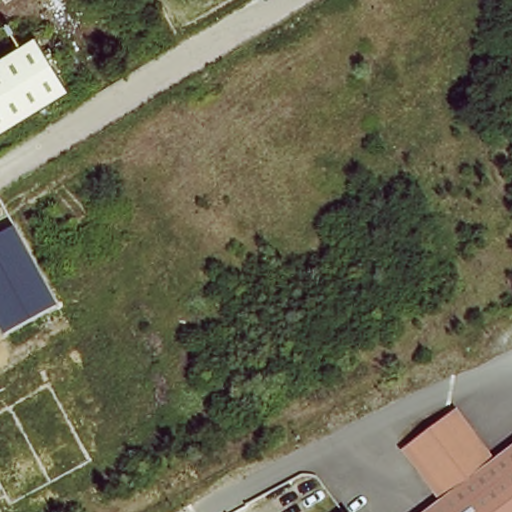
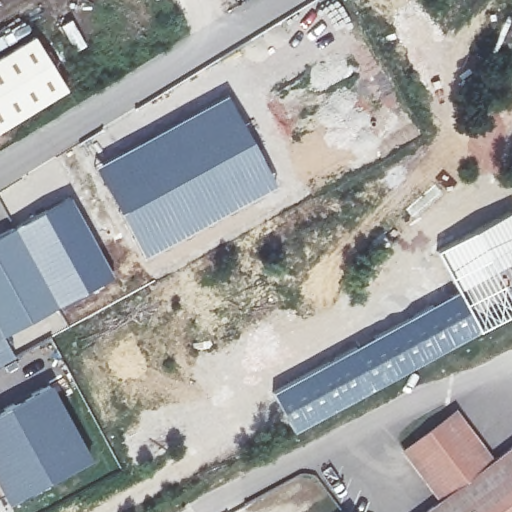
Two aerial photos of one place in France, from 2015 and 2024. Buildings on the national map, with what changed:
unchanged [(34,36),(67,92),(0,130),(0,55),(34,36)]
new [(227,93),(276,183),(181,236),(144,254),(95,166),(227,93)]
new [(512,211),(512,313),(480,330),(456,290),(435,250),(511,210),(512,211)]
unchanged [(57,306),(3,335),(0,330),(0,237),(17,229),(57,306)]
new [(456,290),(480,330),(413,367),(323,413),(294,430),(272,391),(456,290)]
new [(3,335),(14,355),(0,362),(0,330),(3,335)]
new [(50,384),(92,458),(9,505),(4,493),(0,495),(0,410),(50,384)]
unchanged [(444,498),(406,448),(456,411),(494,461),(512,448),(512,512),(425,512),(427,511),(444,498)]

